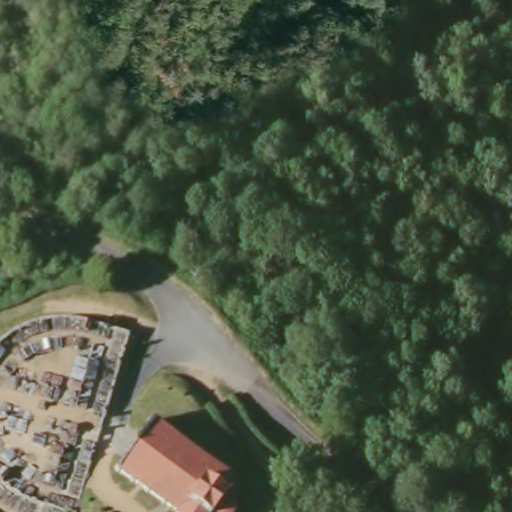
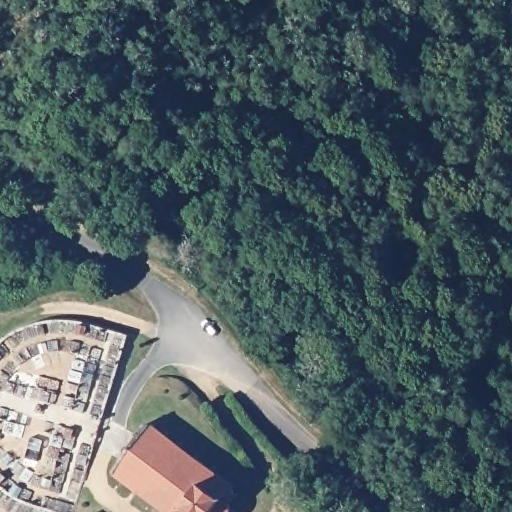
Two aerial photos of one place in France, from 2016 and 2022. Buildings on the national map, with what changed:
unchanged [(156,419),(164,425),(168,421),(172,425),(169,429),(178,435),(181,432),(186,435),(184,440),(194,448),(199,444),(203,448),(201,453),(211,460),(216,456),(220,460),(218,465),(236,480),(236,483),(239,487),(231,498),(238,503),(236,507),(232,506),(228,512),(173,512),(174,507),(163,499),(160,502),(157,500),(159,495),(148,486),(144,488),(141,485),(142,482),(132,475),(129,478),(126,476),(128,473),(118,465),(114,467),(111,465),(113,462),(110,460),(112,458),(114,459),(119,452),(118,449),(119,446),(124,446),(134,432),(132,430),(135,427),(139,429),(144,422),(142,419),(146,414),(151,417),(154,413),(158,415),(156,419)]

